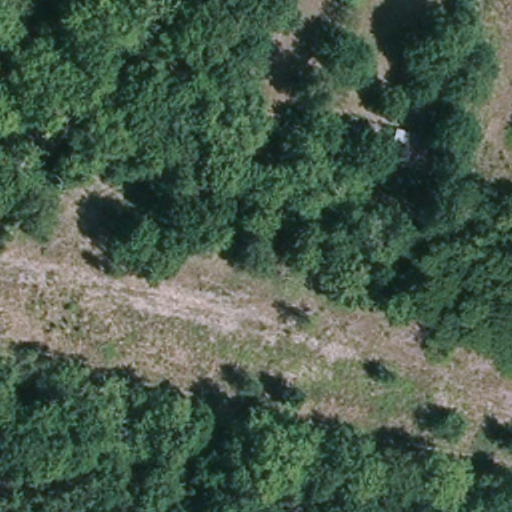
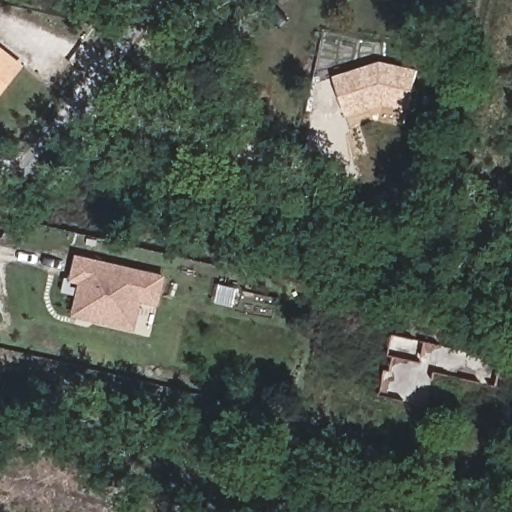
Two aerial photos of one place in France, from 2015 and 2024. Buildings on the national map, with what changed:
new [(25,63),(0,95),(0,44),(25,63)]
new [(381,104),(347,116),(334,76),(378,60),(417,69),(408,109),(381,104)]
unchanged [(409,149),(391,146),(394,131),(413,134),(409,149)]
new [(144,302),(136,331),(72,316),(76,285),(69,283),(77,254),(167,274),(160,306),(144,302)]

